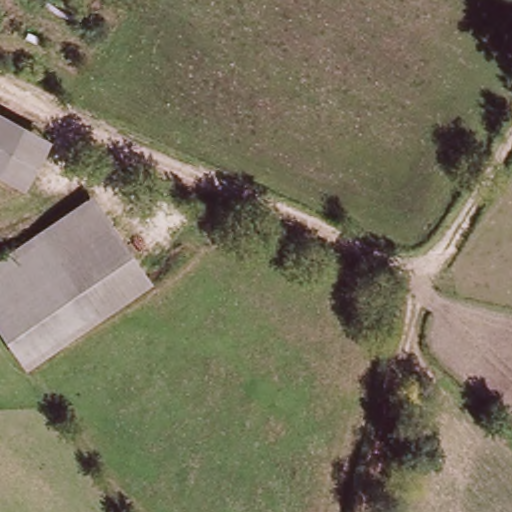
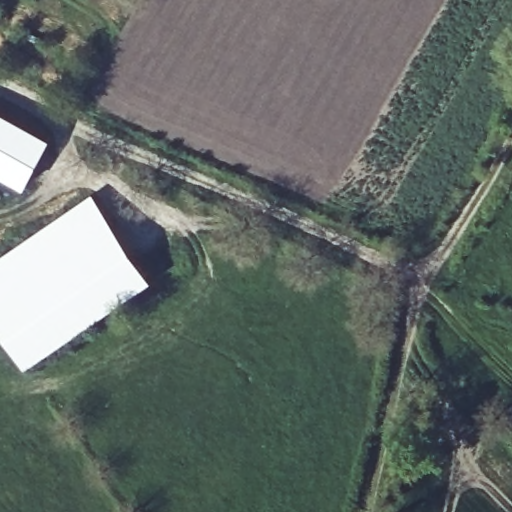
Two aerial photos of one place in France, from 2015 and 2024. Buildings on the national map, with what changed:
unchanged [(19,196),(0,185),(0,121),(47,150),(19,196)]
unchanged [(90,200),(146,281),(96,315),(40,235),(90,200)]
unchanged [(96,315),(23,368),(0,335),(0,263),(40,235),(96,315)]

